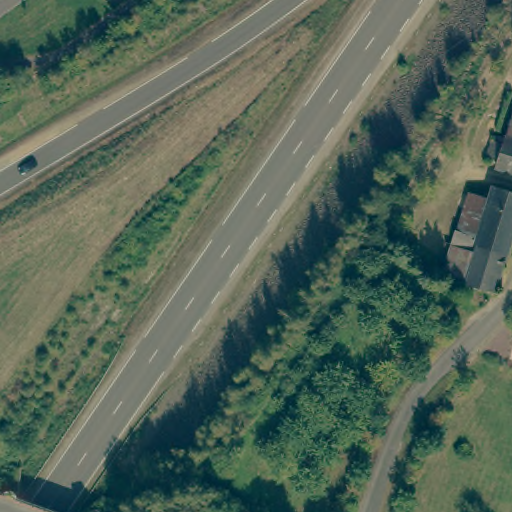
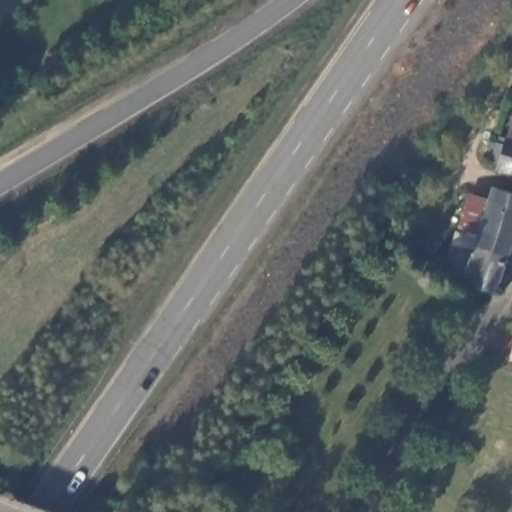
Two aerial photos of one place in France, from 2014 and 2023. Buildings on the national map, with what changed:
unchanged [(512,111),(512,141),(501,137),(512,111)]
unchanged [(491,140),(499,142),(501,137),(512,141),(512,173),(493,166),(495,159),(484,156),(491,140)]
unchanged [(512,196),(512,219),(488,292),(462,283),(493,190),(512,196)]

